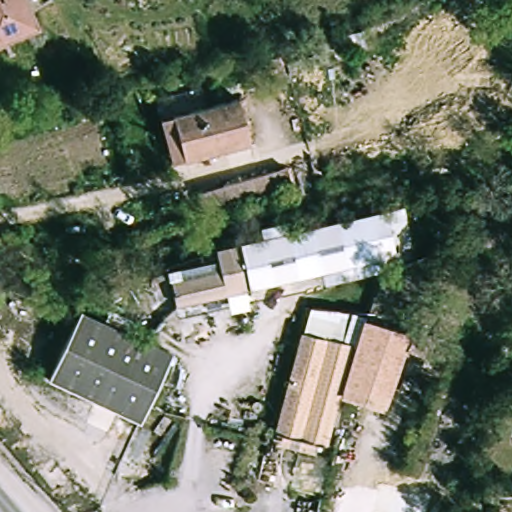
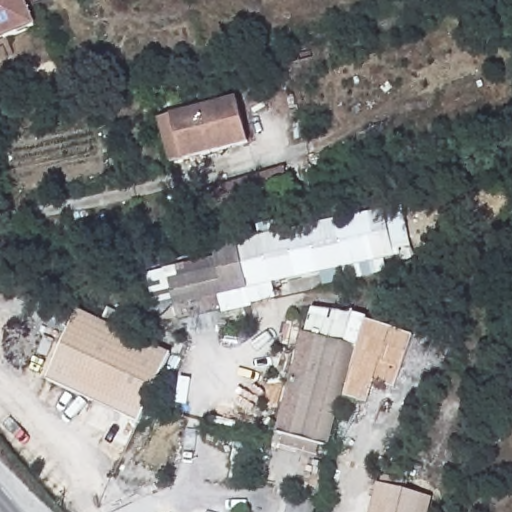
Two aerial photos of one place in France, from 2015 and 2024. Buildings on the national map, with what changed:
unchanged [(0,43),(0,0),(28,0),(39,26),(0,43)]
unchanged [(159,120),(170,116),(237,100),(248,143),(182,160),(170,163),(159,120)]
unchanged [(201,193),(288,168),(295,190),(207,215),(201,193)]
unchanged [(418,231),(401,234),(405,251),(233,291),(183,302),(178,278),(228,266),(223,245),(411,202),(418,231)]
unchanged [(362,344),(357,343),(330,442),(304,435),(301,445),(286,441),(289,430),(282,429),(314,311),(345,319),(346,314),(363,319),(364,316),(371,318),(362,344)]
unchanged [(78,313),(171,356),(145,410),(139,424),(46,381),(78,313)]
unchanged [(372,401),(348,392),(360,352),(362,344),(371,318),(397,325),(394,335),(372,401)]
unchanged [(415,342),(393,408),(372,401),(394,335),(415,342)]
new [(378,483),(430,496),(427,512),(370,512),(378,483)]

